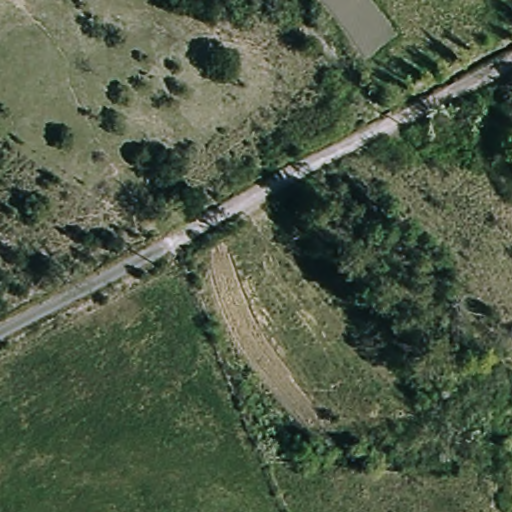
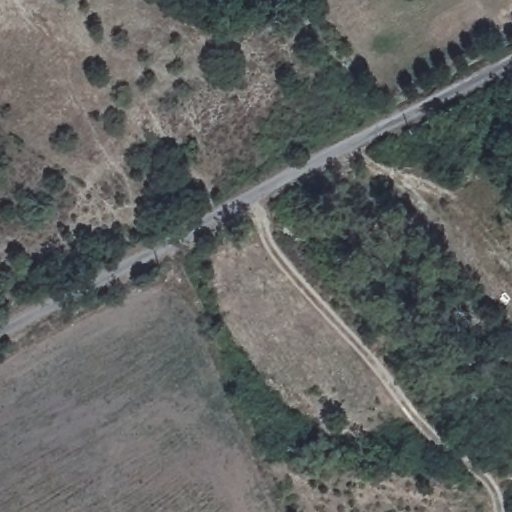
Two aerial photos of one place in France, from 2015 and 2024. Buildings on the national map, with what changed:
[]

